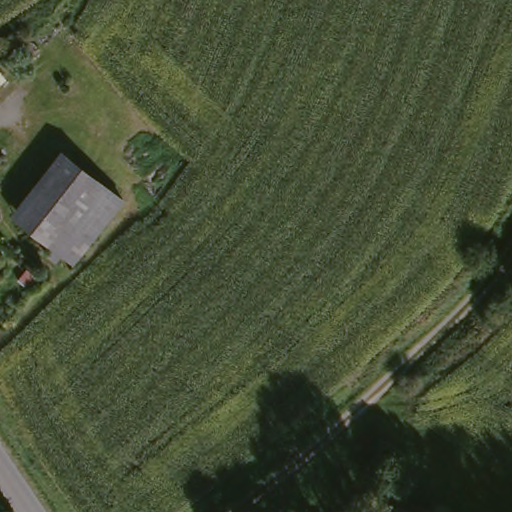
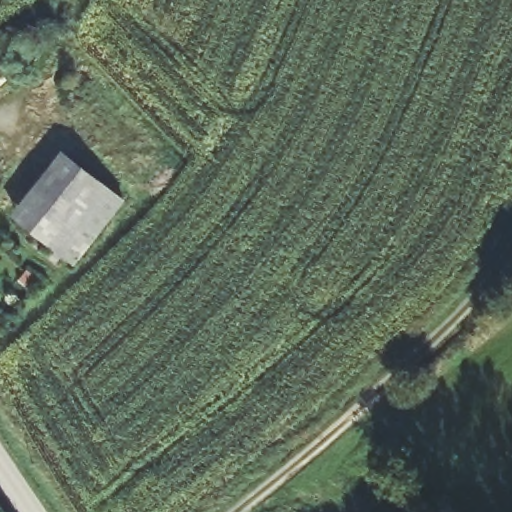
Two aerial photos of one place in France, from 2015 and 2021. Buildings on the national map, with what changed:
unchanged [(58,155),(63,148),(101,176),(54,241),(16,213),(58,155)]
unchanged [(52,251),(58,244),(54,241),(101,176),(129,197),(80,261),(68,252),(63,259),(52,251)]
unchanged [(30,293),(15,280),(24,269),(39,283),(30,293)]

